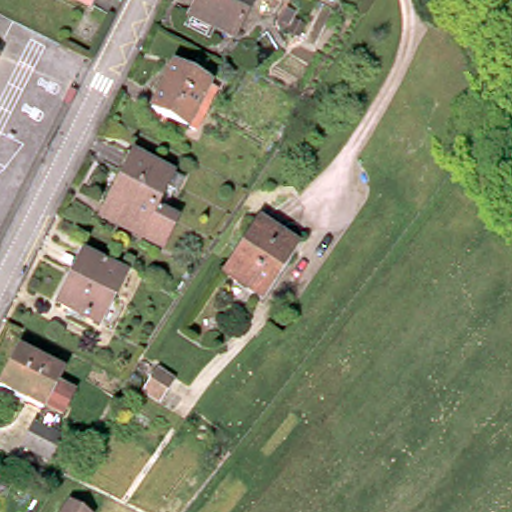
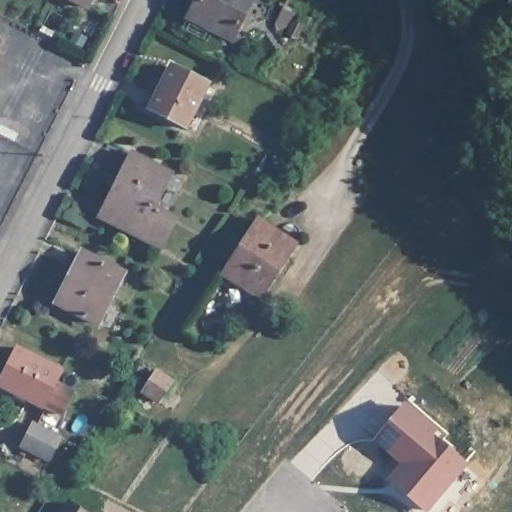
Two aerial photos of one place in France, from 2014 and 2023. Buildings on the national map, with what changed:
unchanged [(88,4),(80,0),(90,0),(88,4)]
unchanged [(226,43),(184,21),(194,0),(247,0),(226,43)]
unchanged [(313,30),(327,38),(314,62),(299,54),(313,30)]
unchanged [(207,89),(185,131),(149,112),(172,70),(207,89)]
unchanged [(106,216),(132,168),(168,186),(153,215),(175,226),(157,260),(122,241),(99,229),(106,216)]
unchanged [(289,251),(253,303),(217,280),(253,228),(289,251)]
unchanged [(124,275),(98,323),(60,302),(85,254),(124,275)]
unchanged [(58,370),(38,406),(0,385),(0,375),(15,347),(58,370)]
unchanged [(171,390),(157,411),(142,402),(156,381),(171,390)]
new [(469,465),(429,512),(423,512),(387,481),(400,465),(372,441),(405,402),(438,430),(434,435),(469,465)]
unchanged [(59,441),(46,464),(21,450),(34,427),(59,441)]
unchanged [(63,512),(66,507),(76,512),(63,512)]

